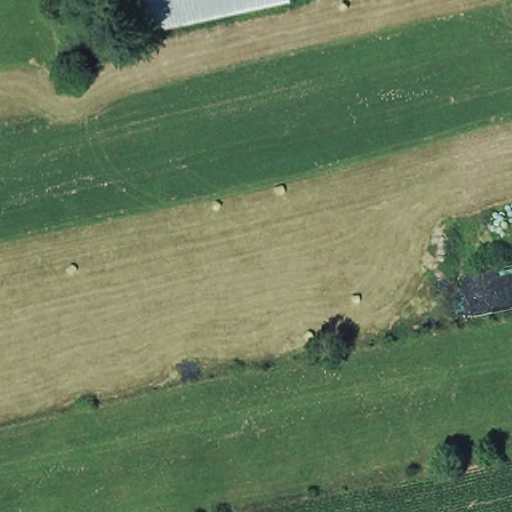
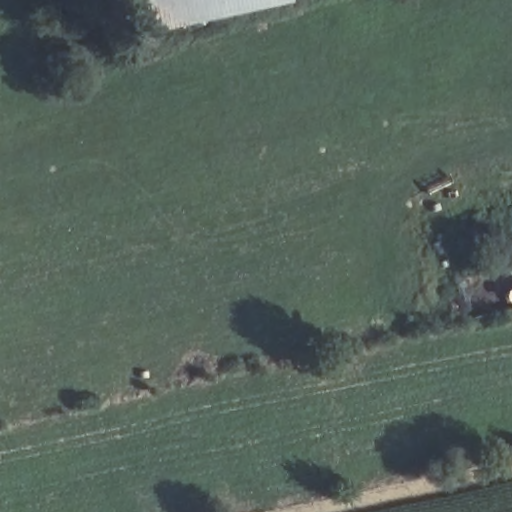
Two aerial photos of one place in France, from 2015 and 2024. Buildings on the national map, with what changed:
unchanged [(131,0),(279,0),(138,32),(131,0)]

